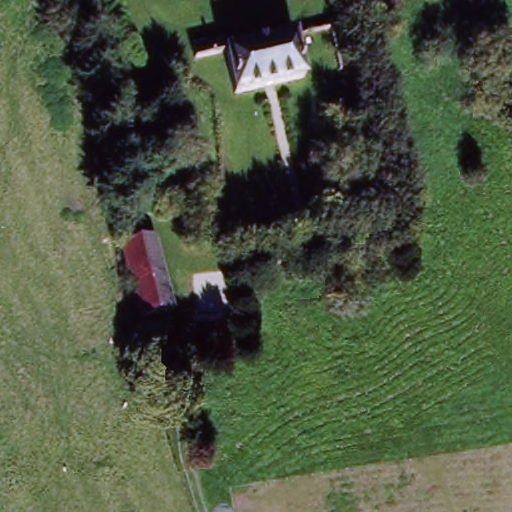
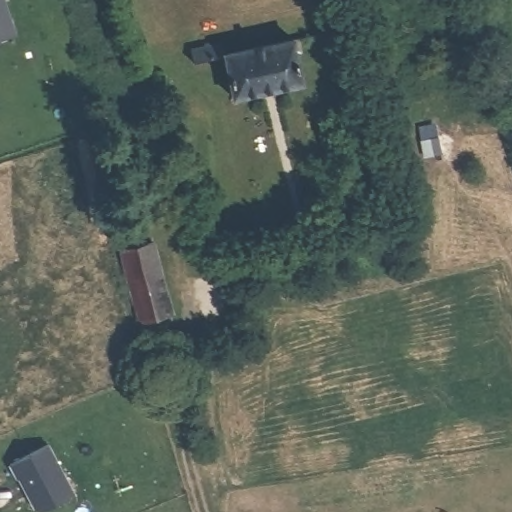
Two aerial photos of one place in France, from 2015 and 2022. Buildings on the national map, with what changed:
new [(0,38),(0,0),(4,0),(16,33),(0,38)]
unchanged [(223,60),(187,68),(182,45),(218,37),(223,60)]
unchanged [(308,82),(232,99),(223,60),(299,44),(308,82)]
unchanged [(138,332),(117,252),(152,242),(174,313),(138,332)]
new [(73,492),(35,512),(17,477),(14,478),(8,464),(48,442),(73,492)]

